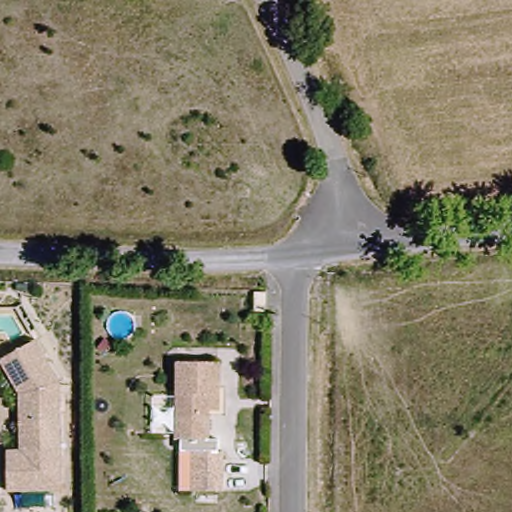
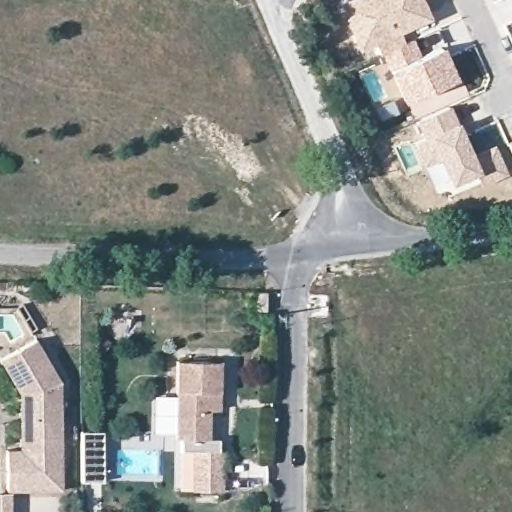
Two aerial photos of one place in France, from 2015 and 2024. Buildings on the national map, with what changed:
new [(456,79),(404,103),(387,68),(373,42),(356,49),(336,2),(340,0),(422,0),(429,16),(401,32),(404,40),(413,37),(420,53),(441,44),(456,79)]
new [(421,138),(413,120),(449,104),(472,151),(496,142),(508,172),(477,185),(474,177),(449,188),(443,177),(437,162),(430,165),(426,168),(412,142),(421,138)]
new [(507,142),(512,140),(512,155),(507,142)]
unchanged [(255,293),(266,293),(266,312),(255,312),(255,293)]
unchanged [(31,389),(16,390),(0,362),(0,355),(31,336),(57,379),(57,436),(31,436),(31,389)]
unchanged [(208,413),(208,440),(176,439),(177,363),(220,363),(219,394),(220,413),(208,413)]
unchanged [(57,486),(33,486),(33,446),(15,446),(16,390),(31,389),(31,436),(57,436),(57,486)]
unchanged [(33,446),(33,486),(3,487),(3,446),(15,446),(33,446)]
unchanged [(171,453),(183,453),(215,452),(216,491),(183,491),(183,490),(171,490),(171,453)]

